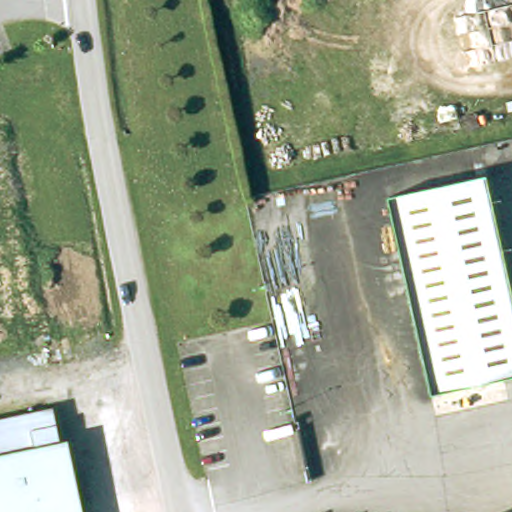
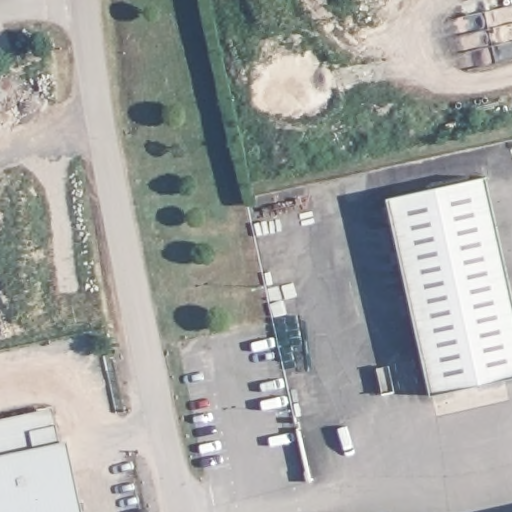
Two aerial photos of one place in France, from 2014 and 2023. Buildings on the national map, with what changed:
unchanged [(388,200),(488,177),(512,298),(512,375),(429,392),(388,200)]
unchanged [(59,412),(62,427),(78,512),(0,512),(0,424),(34,417),(59,412)]

